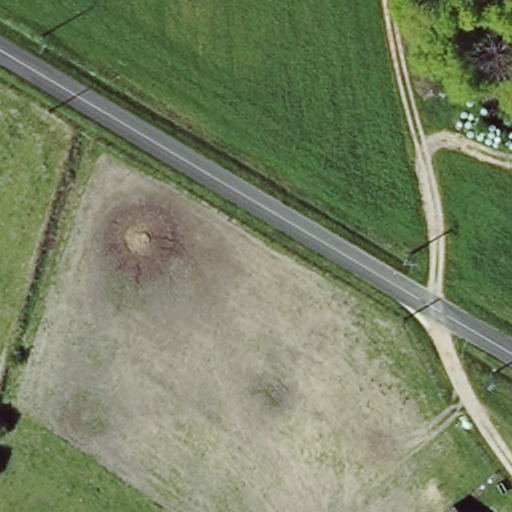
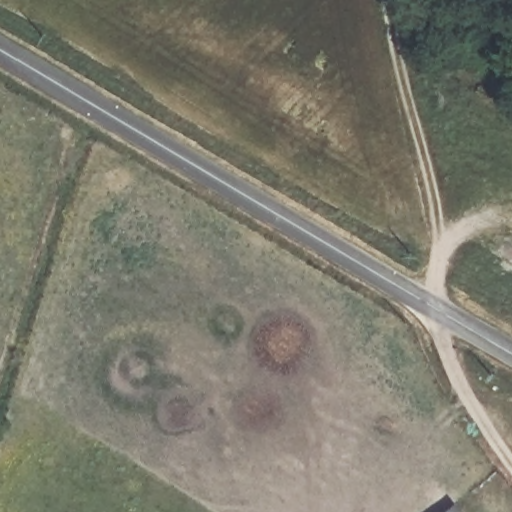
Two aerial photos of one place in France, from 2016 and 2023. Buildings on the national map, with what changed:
unchanged [(452,512),(442,512),(447,507),(452,512)]

